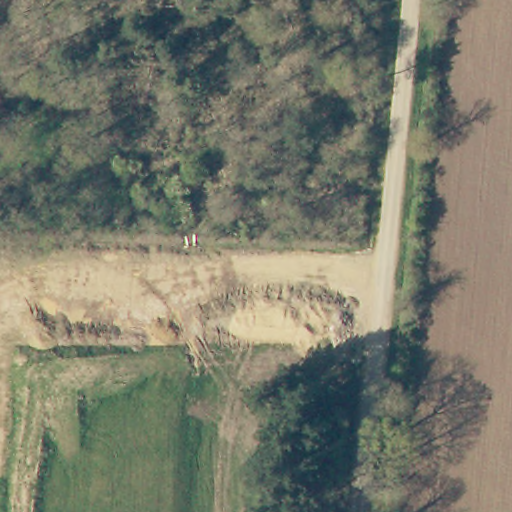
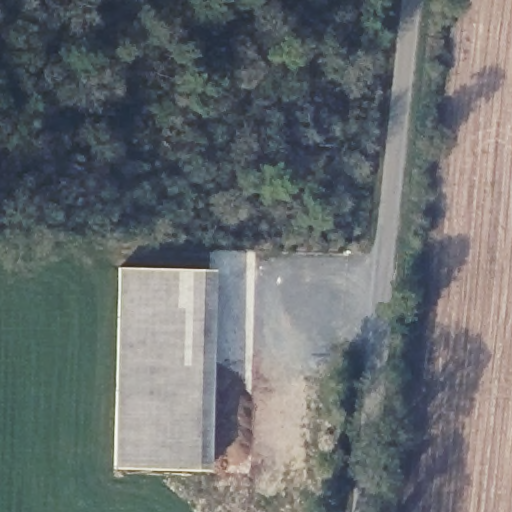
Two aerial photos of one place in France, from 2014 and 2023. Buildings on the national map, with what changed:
new [(205,472),(113,470),(119,267),(212,271),(205,472)]

